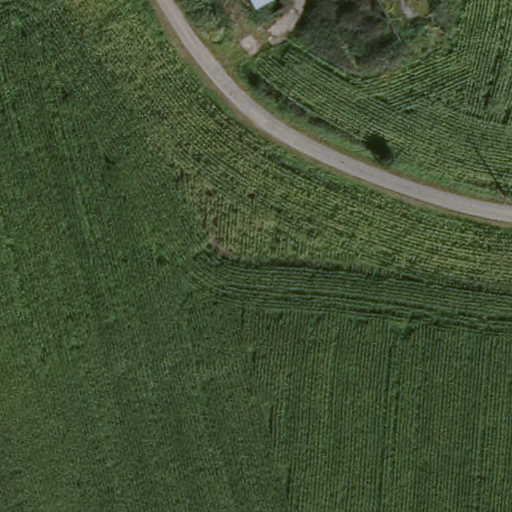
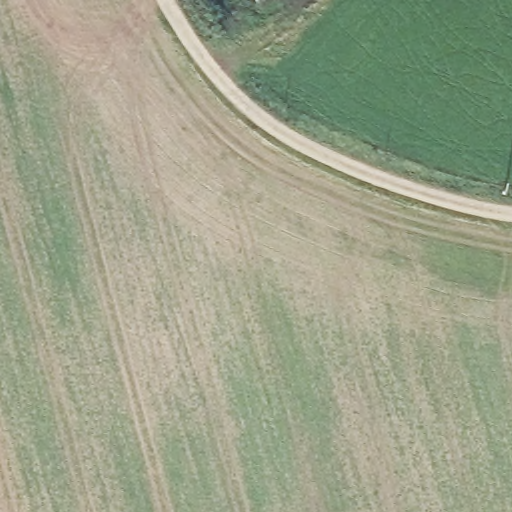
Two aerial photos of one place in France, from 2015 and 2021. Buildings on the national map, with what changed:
unchanged [(256,4),(254,0),(265,0),(256,4)]

